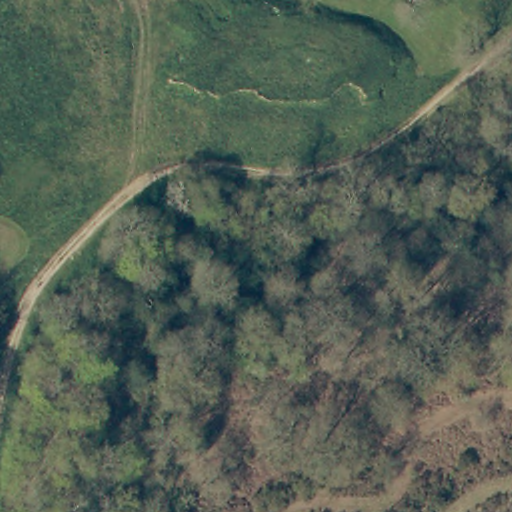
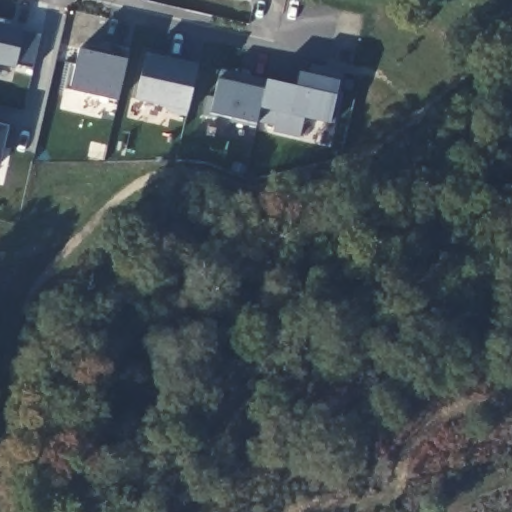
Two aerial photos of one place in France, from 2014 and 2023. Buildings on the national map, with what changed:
new [(33,69),(17,65),(16,68),(0,65),(0,25),(41,34),(33,69)]
new [(187,112),(133,100),(144,53),(199,66),(187,112)]
new [(342,81),(332,124),(306,119),(300,137),(258,123),(212,114),(220,79),(221,69),(266,79),(296,86),(299,71),(310,73),(311,64),(343,73),(342,81)]
new [(10,128),(17,129),(12,150),(6,149),(2,167),(0,167),(0,125),(10,128)]

